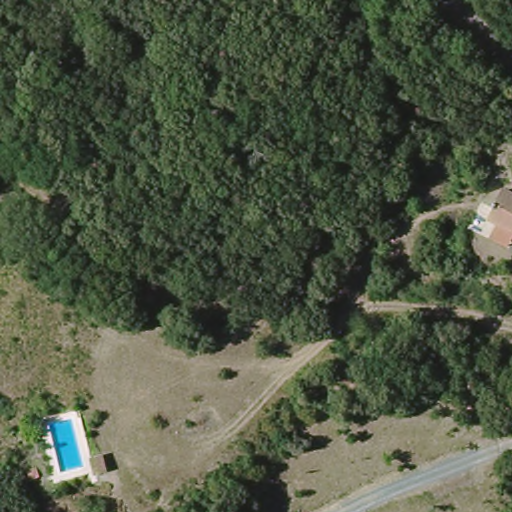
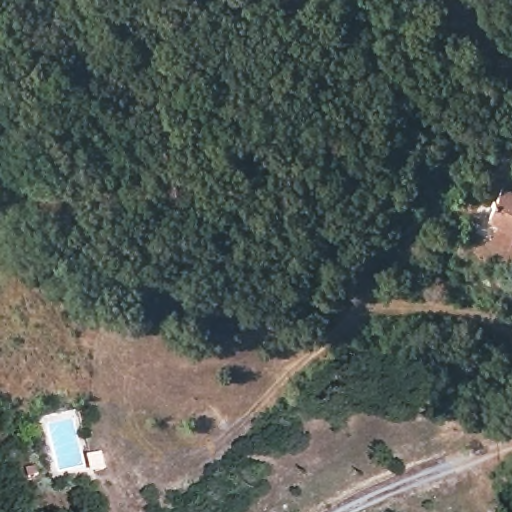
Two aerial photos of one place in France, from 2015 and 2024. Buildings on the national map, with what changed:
unchanged [(499,193),(512,200),(512,237),(482,224),(499,193)]

